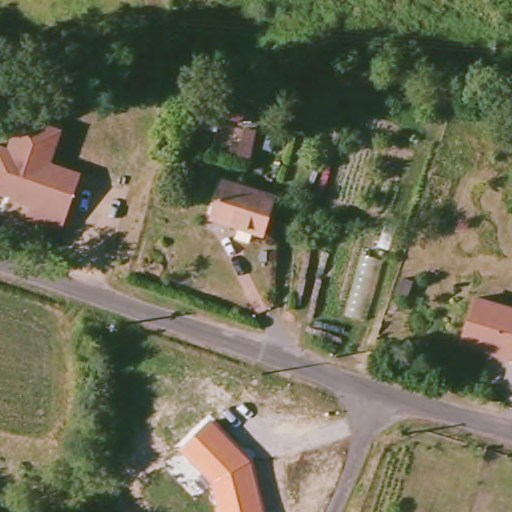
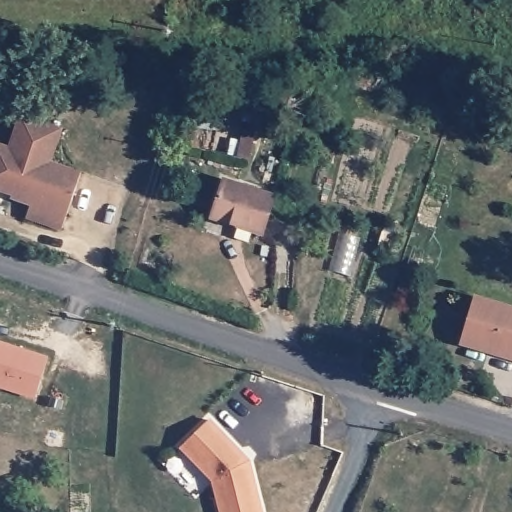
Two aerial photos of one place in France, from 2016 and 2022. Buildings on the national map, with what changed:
unchanged [(17,121),(57,135),(45,168),(77,179),(57,235),(22,223),(26,210),(7,203),(7,199),(0,197),(0,152),(5,154),(17,121)]
unchanged [(258,128),(250,157),(241,154),(249,125),(258,128)]
unchanged [(223,178),(275,195),(263,232),(211,214),(223,178)]
unchanged [(512,313),(512,359),(460,343),(473,301),(512,313)]
new [(0,342),(47,358),(35,399),(0,387),(0,342)]
unchanged [(250,460),(260,512),(216,512),(210,479),(180,449),(210,418),(250,460)]

